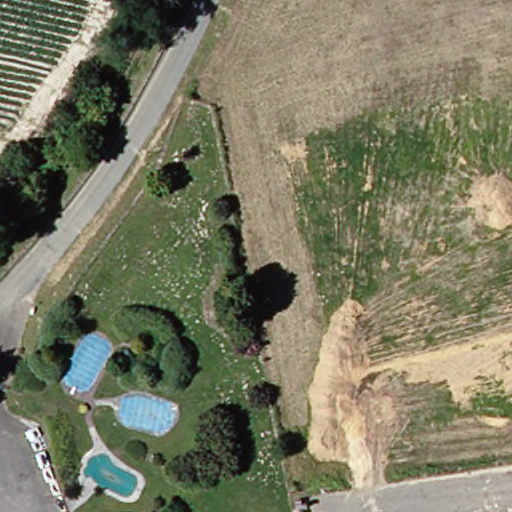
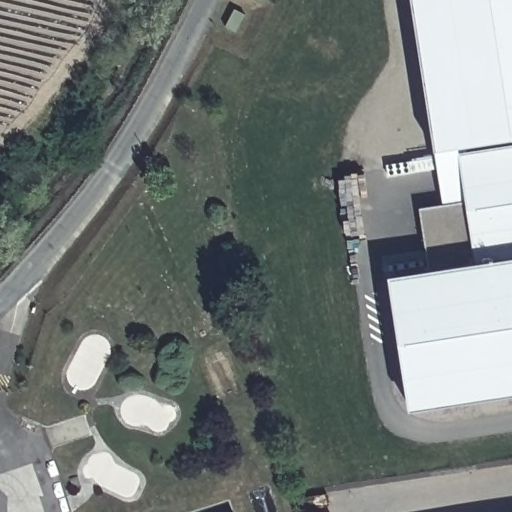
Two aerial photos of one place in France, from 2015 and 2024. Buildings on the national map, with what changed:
new [(421,209),(446,204),(414,0),(512,0),(512,397),(412,412),(392,282),(431,275),(421,209)]

